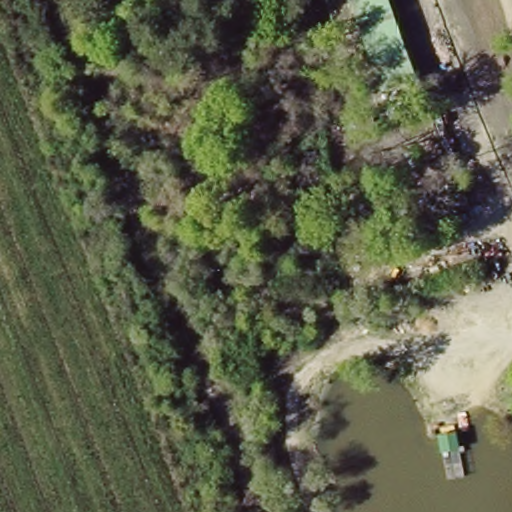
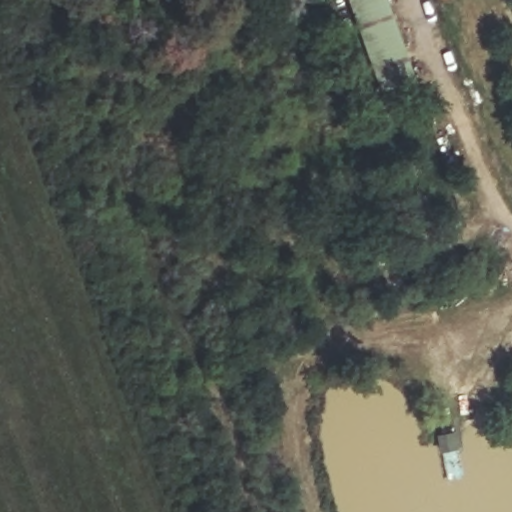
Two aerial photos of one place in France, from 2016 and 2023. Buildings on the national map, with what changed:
unchanged [(350,0),(390,0),(419,78),(383,91),(350,0)]

